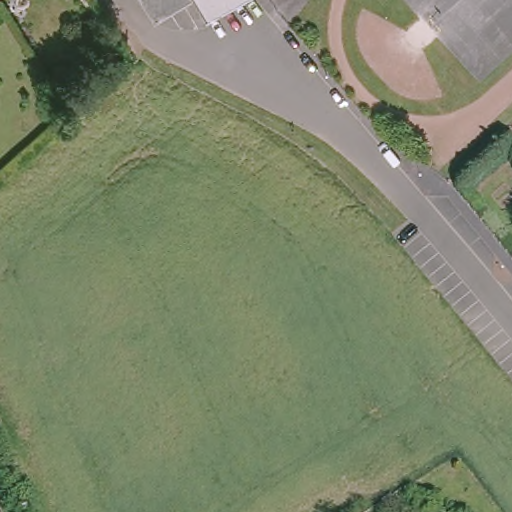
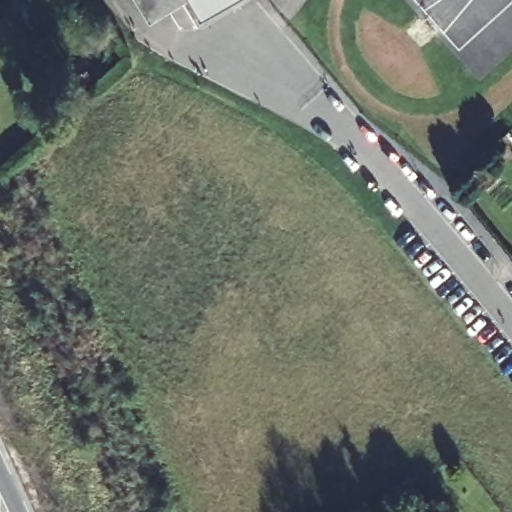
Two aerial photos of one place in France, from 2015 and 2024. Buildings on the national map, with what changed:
unchanged [(154,16),(144,0),(181,0),(154,16)]
unchanged [(207,16),(197,0),(234,0),(207,16)]

